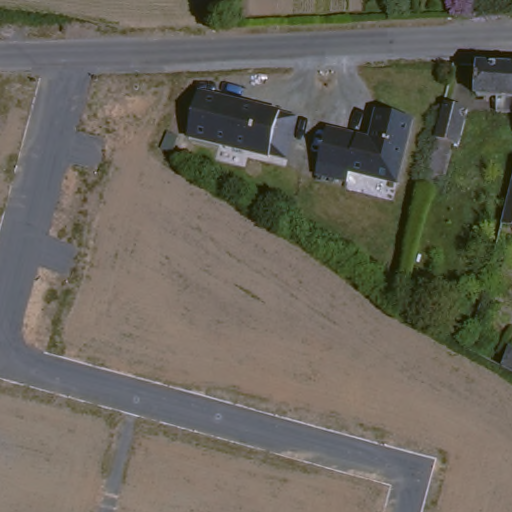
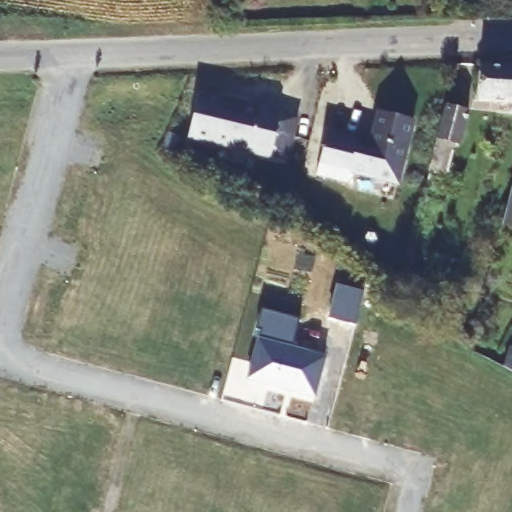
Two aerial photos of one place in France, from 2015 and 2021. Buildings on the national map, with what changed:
unchanged [(497,108),(497,94),(477,94),(477,63),(512,64),(512,108),(497,108)]
unchanged [(435,160),(437,148),(438,146),(442,127),(446,111),(452,92),(474,98),(465,132),(459,131),(453,152),(450,163),(435,160)]
unchanged [(290,160),(273,156),(273,158),(192,137),(201,100),(202,93),(242,101),(284,111),(283,113),(300,117),(290,160)]
unchanged [(371,138),(378,107),(411,114),(398,179),(353,170),(351,180),(321,173),(330,130),(360,136),(371,138)]
unchanged [(508,185),(510,179),(512,171),(512,223),(500,220),(500,216),(508,185)]
new [(262,333),(257,332),(262,311),(301,321),(293,350),(326,359),(315,399),(249,381),(262,333)]
unchanged [(509,344),(512,345),(512,370),(501,364),(509,344)]

